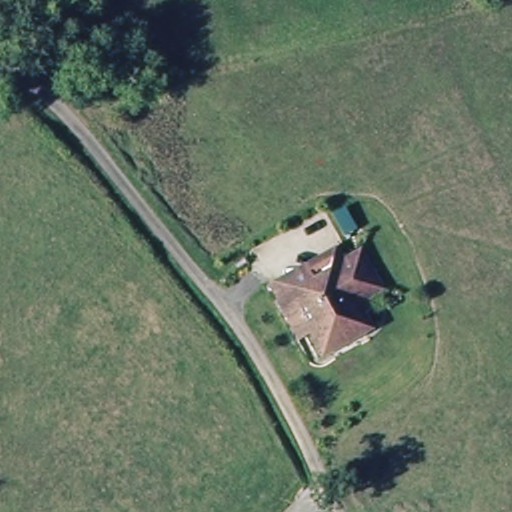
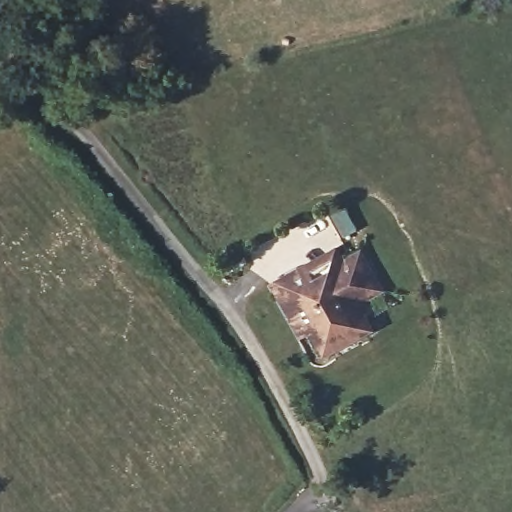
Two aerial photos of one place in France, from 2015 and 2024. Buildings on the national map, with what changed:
unchanged [(310,342),(306,334),(286,293),(282,286),(352,251),(360,268),(371,263),(387,293),(375,299),(377,306),(366,312),(375,329),(376,332),(338,351),(331,337),(312,345),(310,342)]

